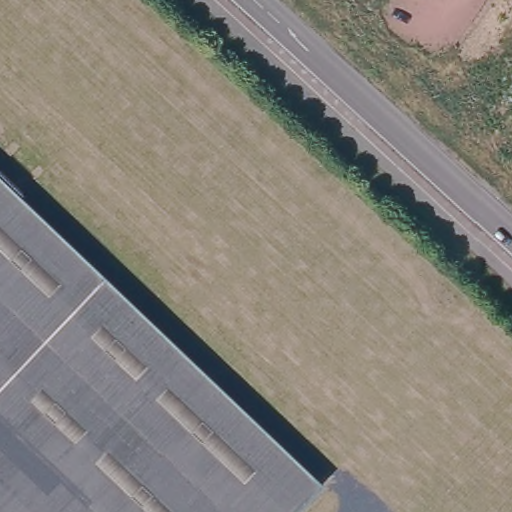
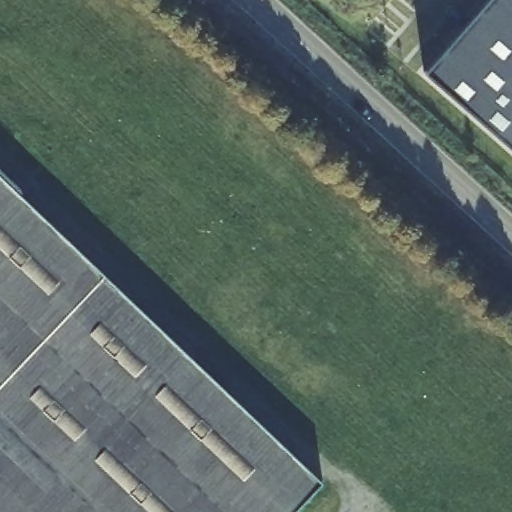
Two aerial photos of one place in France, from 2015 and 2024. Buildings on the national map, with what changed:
new [(487,0),(512,0),(512,144),(427,69),(487,0)]
unchanged [(316,481),(287,512),(0,512),(0,184),(316,481)]

